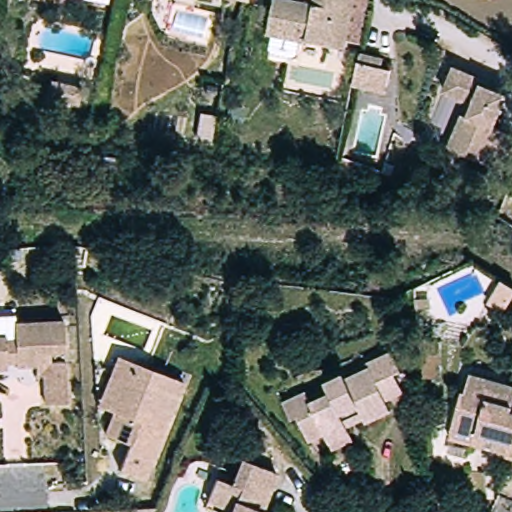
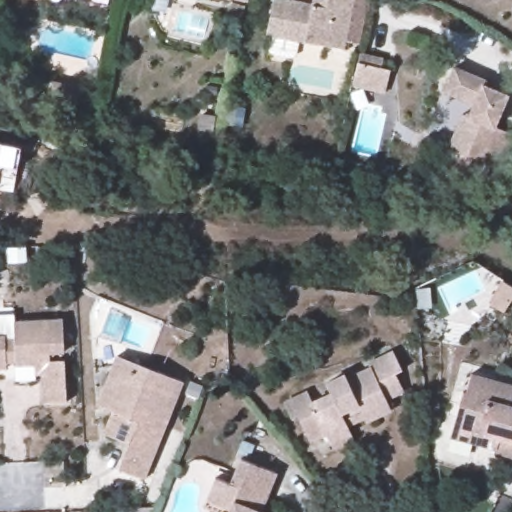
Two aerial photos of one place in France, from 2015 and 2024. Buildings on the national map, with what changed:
unchanged [(339,38),(337,48),(260,31),(267,0),(296,0),(307,2),(307,0),(361,0),(353,41),(339,38)]
unchanged [(471,118),(477,105),(446,91),(457,66),(487,80),(486,85),(509,95),(496,126),(512,133),(512,143),(500,170),(462,154),(451,149),(465,116),(471,118)]
new [(22,146),(13,191),(0,188),(0,143),(22,146)]
unchanged [(489,304),(503,281),(512,287),(512,297),(502,312),(489,304)]
unchanged [(1,348),(1,351),(10,351),(10,334),(57,331),(61,414),(40,415),(38,386),(31,385),(30,376),(12,377),(12,372),(2,372),(0,372),(0,348),(1,348)]
unchanged [(331,446),(328,439),(323,430),(307,437),(296,412),(291,415),(283,398),(306,388),(310,398),(329,390),(324,380),(345,370),(347,375),(370,365),(368,361),(394,349),(402,367),(394,371),(402,388),(384,395),(389,407),(364,418),(363,415),(345,423),(348,430),(351,437),(331,446)]
unchanged [(143,483),(117,473),(127,448),(102,439),(112,415),(102,411),(95,409),(115,359),(157,375),(181,384),(143,483)]
unchanged [(493,445),(447,433),(459,388),(464,389),(469,370),(512,381),(512,409),(512,455),(492,449),(493,445)]
unchanged [(2,380),(0,380),(0,374),(2,374),(2,380)]
unchanged [(222,512),(203,504),(215,475),(230,481),(239,458),(274,472),(259,511),(262,512),(222,512)]

